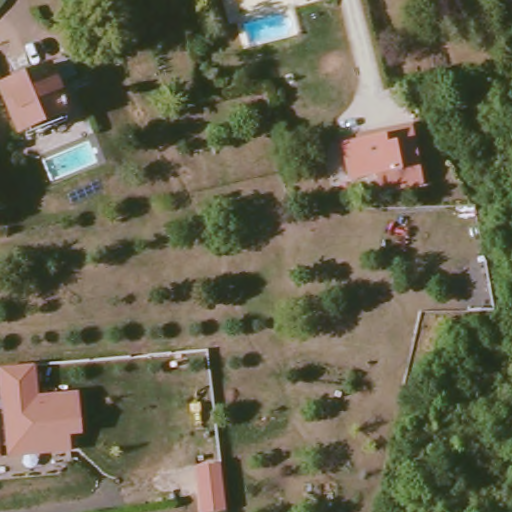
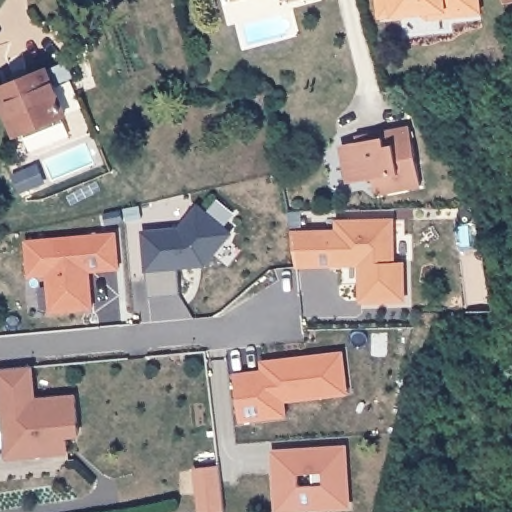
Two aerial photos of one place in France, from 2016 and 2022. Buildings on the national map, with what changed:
new [(426,23),(425,17),(376,21),(375,0),(479,0),(482,16),(426,23)]
unchanged [(509,0),(512,0),(512,3),(510,3),(509,0)]
unchanged [(0,93),(0,83),(65,56),(72,73),(56,80),(55,77),(51,79),(62,109),(14,129),(0,93)]
unchanged [(419,187),(374,191),(372,174),(347,176),(345,144),(350,137),(370,136),(369,131),(396,129),(415,127),(419,187)]
new [(233,232),(206,266),(179,268),(182,296),(149,298),(142,230),(180,227),(197,205),(233,232)]
new [(289,212),(301,211),(302,230),(335,229),(334,219),(396,217),(397,262),(406,262),(409,303),(359,302),(358,266),(297,267),(289,212)]
new [(117,231),(121,270),(92,272),(95,310),(49,313),(46,277),(27,278),(25,239),(117,231)]
new [(262,370),(261,360),(344,350),(350,395),(287,401),(288,417),(240,422),(235,372),(262,370)]
unchanged [(38,396),(77,392),(82,436),(70,437),(71,452),(0,460),(0,402),(0,369),(36,366),(38,396)]
new [(348,443),(352,508),(283,512),(275,512),(272,450),(348,443)]
new [(220,465),(225,512),(199,512),(194,467),(220,465)]

